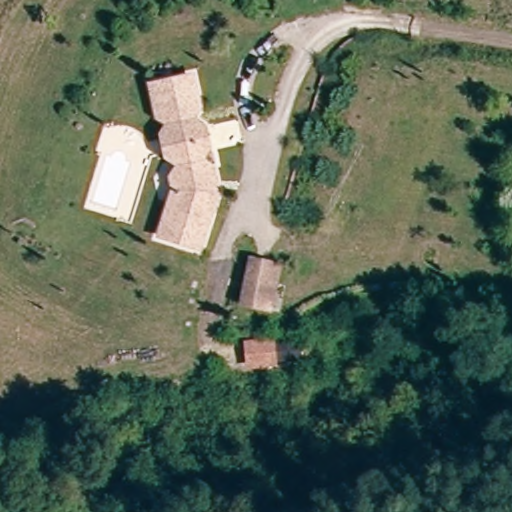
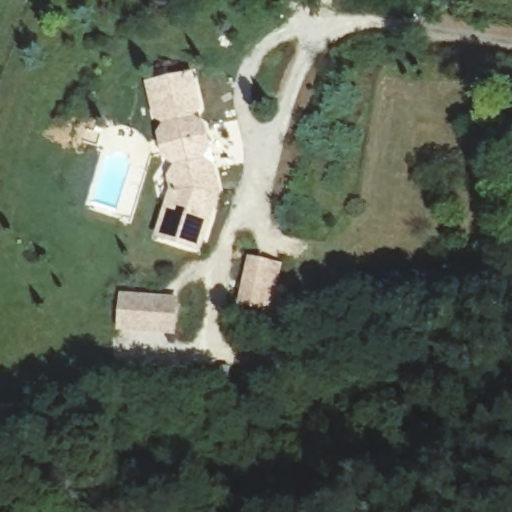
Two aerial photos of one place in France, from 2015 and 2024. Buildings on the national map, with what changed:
unchanged [(203,110),(196,119),(207,125),(212,148),(205,159),(216,166),(222,193),(201,252),(154,237),(168,198),(165,164),(160,156),(155,134),(163,125),(152,123),(146,82),(196,74),(203,110)]
unchanged [(256,278),(273,281),(266,308),(252,306),(256,278)]
new [(119,292),(178,296),(175,340),(117,334),(119,292)]

